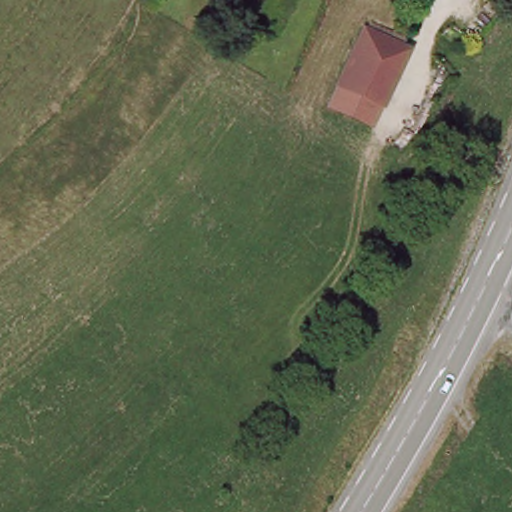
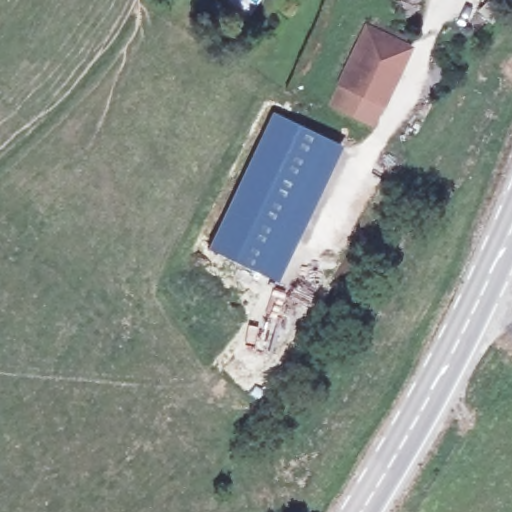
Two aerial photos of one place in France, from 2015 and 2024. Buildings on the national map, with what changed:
unchanged [(339,82),(360,27),(409,47),(382,101),(339,82)]
new [(273,111),(341,143),(276,280),(208,248),(273,111)]

